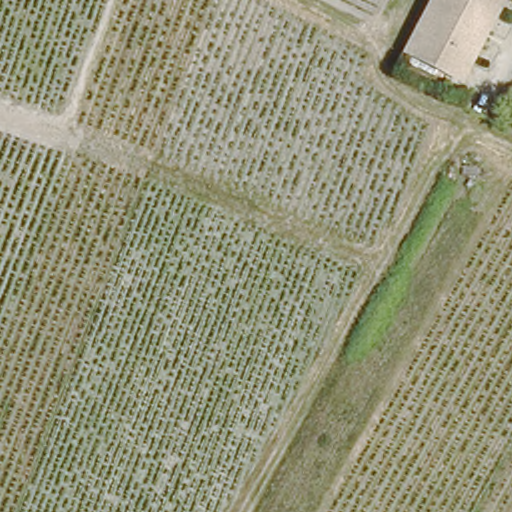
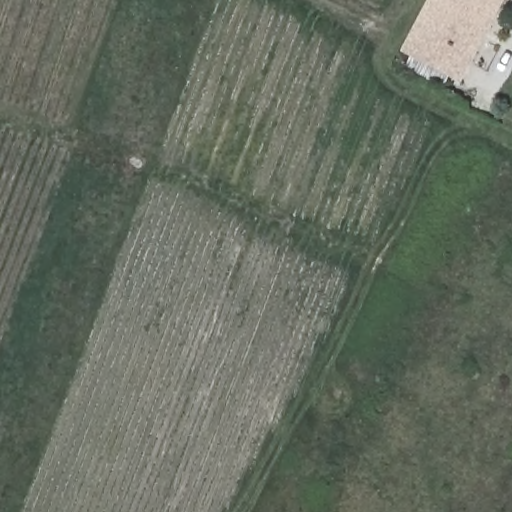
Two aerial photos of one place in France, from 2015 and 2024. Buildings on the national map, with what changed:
unchanged [(402,51),(419,21),(432,29),(439,16),(468,33),(486,0),(506,0),(463,83),(402,51)]
unchanged [(486,0),(468,33),(439,16),(432,29),(419,21),(431,0),(486,0)]
unchanged [(509,499),(512,500),(512,512),(503,512),(509,499)]

